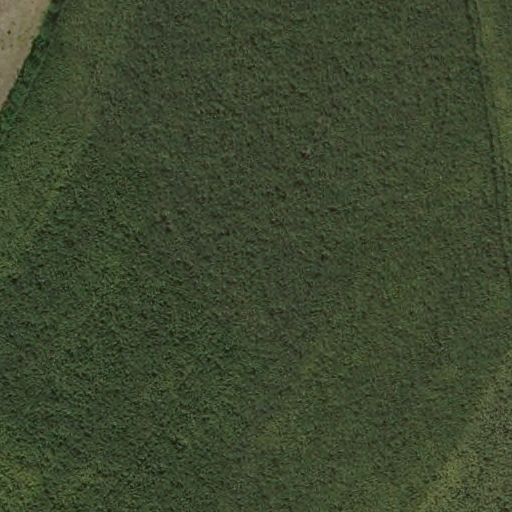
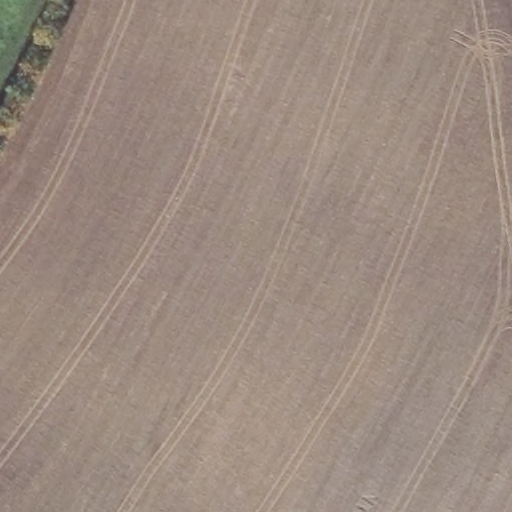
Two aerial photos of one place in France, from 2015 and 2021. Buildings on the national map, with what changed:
[]

